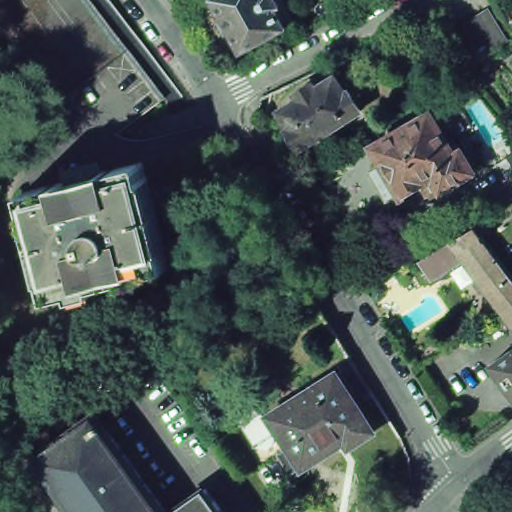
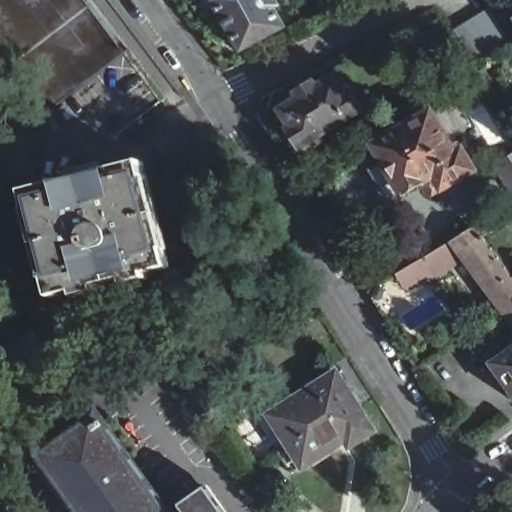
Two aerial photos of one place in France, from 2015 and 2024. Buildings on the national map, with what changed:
unchanged [(118,129),(84,155),(47,106),(0,44),(0,0),(89,0),(161,96),(118,129)]
unchanged [(276,8),(287,28),(242,51),(214,0),(277,0),(280,6),(276,8)]
unchanged [(455,31),(466,23),(478,16),(489,9),(509,41),(498,48),(486,55),(474,63),(455,31)]
unchanged [(352,87),(356,86),(368,105),(306,143),(294,124),(297,122),(287,105),(306,93),(303,88),(319,78),(323,83),(342,71),(352,87)]
unchanged [(456,150),(463,146),(474,165),(434,189),(426,176),(404,189),(402,185),(389,192),(374,166),(386,158),(376,141),(432,108),(456,150)]
unchanged [(71,176),(72,180),(108,171),(107,166),(148,156),(153,175),(147,177),(165,246),(171,244),(175,262),(57,292),(52,274),(58,272),(41,203),(35,205),(30,186),(71,176)]
unchanged [(512,164),(512,191),(500,173),(512,164)]
unchanged [(490,285),(486,288),(482,287),(476,280),(477,275),(481,273),(465,252),(430,272),(420,255),(476,222),(512,272),(512,314),(505,305),(490,285)]
unchanged [(387,322),(378,307),(368,292),(397,275),(406,290),(416,305),(387,322)]
unchanged [(512,345),(512,387),(492,359),(512,345)]
unchanged [(346,445),(342,439),(287,474),(274,453),(286,445),(267,415),(333,374),(348,364),(368,396),(353,405),(369,431),(346,445)]
unchanged [(57,462),(47,449),(74,430),(73,428),(95,412),(103,424),(109,419),(166,499),(175,512),(185,505),(203,491),(214,484),(233,512),(81,512),(49,468),(57,462)]

